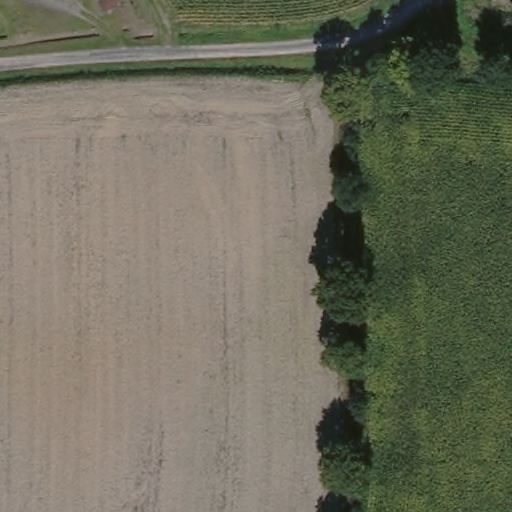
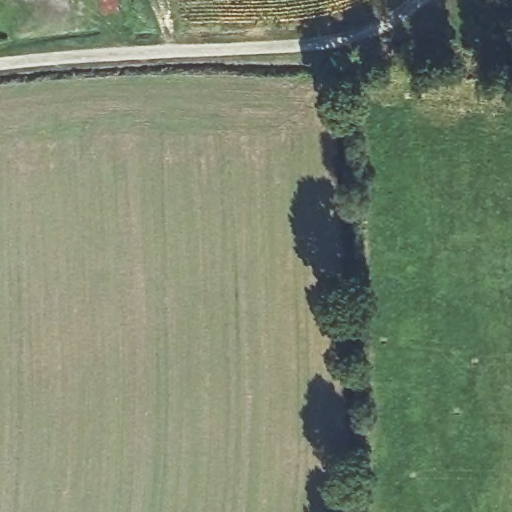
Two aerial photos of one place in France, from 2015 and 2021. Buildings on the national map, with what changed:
unchanged [(106,13),(103,0),(121,0),(123,8),(106,13)]

